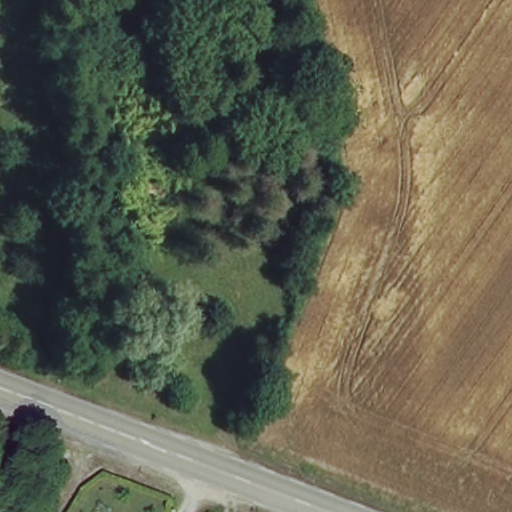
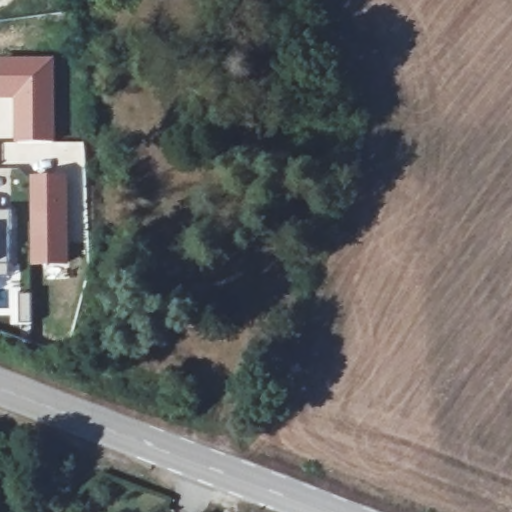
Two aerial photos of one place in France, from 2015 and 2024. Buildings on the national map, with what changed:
new [(55,142),(13,142),(12,101),(0,100),(0,57),(56,57),(55,142)]
new [(68,173),(69,264),(30,266),(29,175),(68,173)]
new [(12,230),(9,231),(9,264),(10,277),(0,277),(0,210),(12,211),(12,230)]

